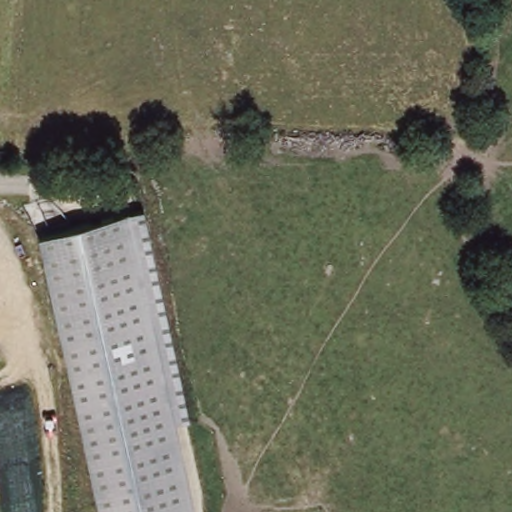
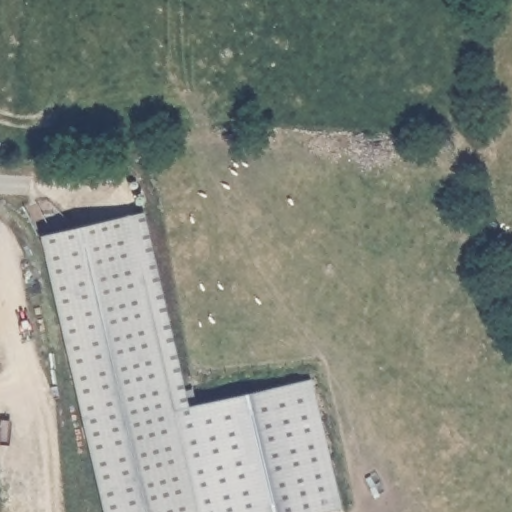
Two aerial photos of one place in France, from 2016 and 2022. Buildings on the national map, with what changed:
unchanged [(194,416),(180,420),(201,512),(102,512),(41,235),(147,211),(194,416)]
new [(194,416),(191,405),(311,378),(339,506),(316,512),(201,512),(180,420),(194,416)]

